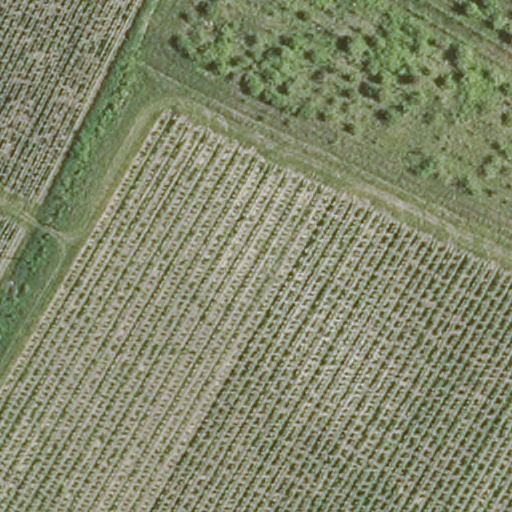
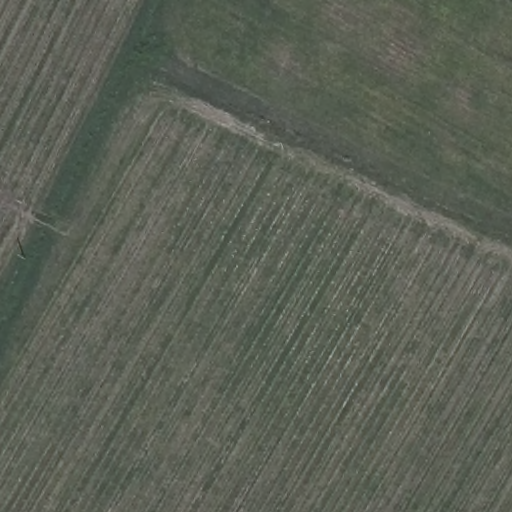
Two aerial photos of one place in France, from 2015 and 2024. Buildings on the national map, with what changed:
[]

